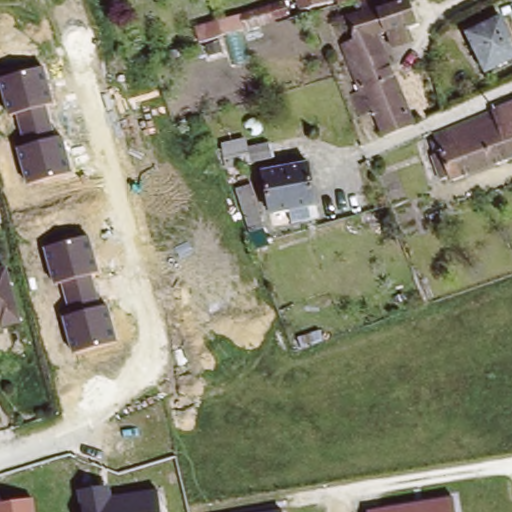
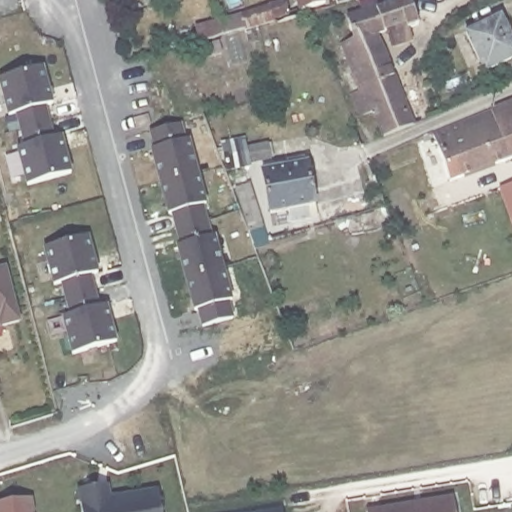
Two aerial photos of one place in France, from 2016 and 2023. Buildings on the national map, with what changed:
unchanged [(324,2),(300,9),(297,0),(323,0),(324,2)]
unchanged [(389,6),(380,10),(381,12),(385,21),(389,30),(381,33),(418,124),(388,136),(378,111),(365,116),(345,67),(354,63),(346,44),(349,43),(349,45),(359,41),(351,18),(366,12),(361,1),(365,0),(387,0),(389,6)]
unchanged [(423,25),(414,28),(419,38),(397,46),(390,30),(389,30),(385,21),(381,12),(380,10),(389,6),(387,0),(413,0),(423,25)]
unchanged [(287,14),(270,19),(271,22),(243,30),(243,29),(222,35),(219,24),(239,18),(238,15),(283,2),(287,14)]
unchanged [(501,17),(512,41),(512,58),(484,71),(466,33),(501,17)]
unchanged [(17,149),(23,147),(15,114),(9,116),(0,83),(0,80),(44,67),(54,102),(46,105),(54,138),(63,136),(73,173),(25,184),(17,149)]
unchanged [(448,176),(440,179),(431,156),(439,152),(432,135),(512,103),(512,158),(450,180),(448,176)]
new [(183,129),(187,146),(191,145),(208,210),(204,211),(213,243),(216,242),(233,307),(229,308),(234,325),(204,332),(199,315),(196,316),(179,251),(183,250),(174,219),(171,219),(153,154),(157,154),(153,137),(183,129)]
unchanged [(267,160),(244,165),(241,148),(264,144),(267,160)]
unchanged [(309,206),(291,209),(293,217),(284,219),(282,211),(266,214),(258,171),(301,162),(309,206)]
new [(512,184),(512,223),(500,188),(512,184)]
unchanged [(244,185),(259,226),(246,231),(231,190),(244,185)]
unchanged [(42,249),(90,236),(99,271),(90,274),(100,308),(108,306),(116,342),(72,353),(62,318),(70,316),(61,282),(52,285),(42,249)]
unchanged [(18,321),(1,326),(0,321),(0,271),(5,270),(18,321)]
unchanged [(113,492),(159,485),(162,512),(81,512),(78,485),(110,481),(113,492)]
unchanged [(34,495),(37,512),(0,512),(0,499),(34,495)]
unchanged [(454,496),(457,512),(367,512),(366,510),(454,496)]
unchanged [(284,512),(274,512),(284,510),(284,512)]

